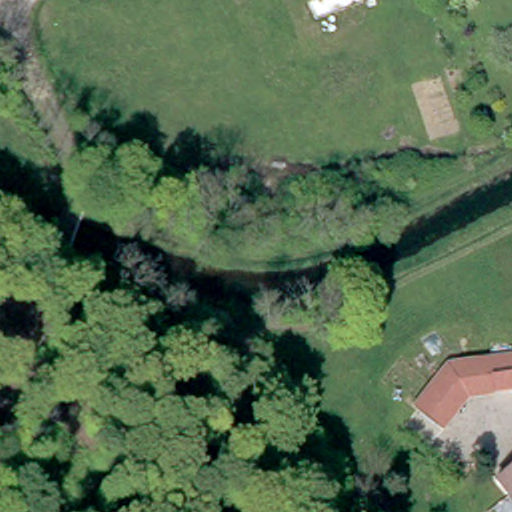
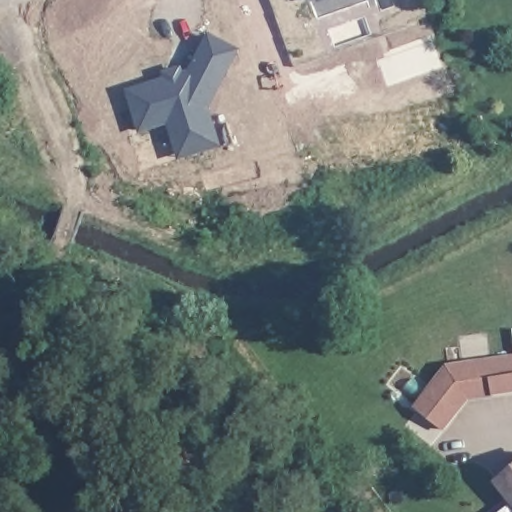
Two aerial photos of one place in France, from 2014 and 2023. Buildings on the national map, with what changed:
unchanged [(317,0),(322,0),(317,1),(317,0)]
new [(167,79),(165,74),(180,69),(182,74),(190,72),(209,36),(237,50),(206,109),(218,145),(195,153),(184,116),(140,131),(128,92),(158,82),(167,79)]
unchanged [(468,398),(442,429),(412,407),(443,364),(512,353),(512,392),(468,398)]
unchanged [(496,482),(512,470),(512,502),(496,482)]

